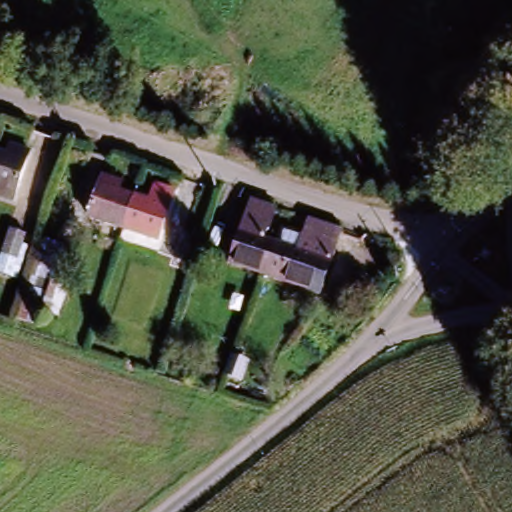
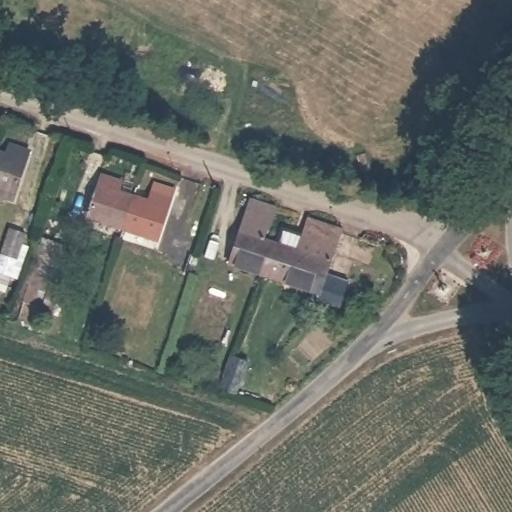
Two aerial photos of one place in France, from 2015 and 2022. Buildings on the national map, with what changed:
unchanged [(12,197),(0,193),(0,152),(6,154),(8,147),(27,155),(12,197)]
unchanged [(87,215),(104,169),(124,176),(120,185),(134,189),(120,227),(87,215)]
unchanged [(149,185),(170,194),(154,239),(120,227),(134,189),(146,194),(149,185)]
unchanged [(275,236),(261,275),(227,260),(253,192),(277,201),(264,234),(275,236)]
unchanged [(344,227),(316,297),(261,275),(275,236),(299,247),(312,215),(344,227)]
unchanged [(42,312),(35,323),(15,317),(45,220),(58,224),(53,239),(62,245),(51,278),(69,286),(61,312),(42,312)]
unchanged [(19,265),(4,260),(12,236),(27,242),(19,265)]
unchanged [(154,239),(172,250),(165,265),(147,258),(154,239)]

